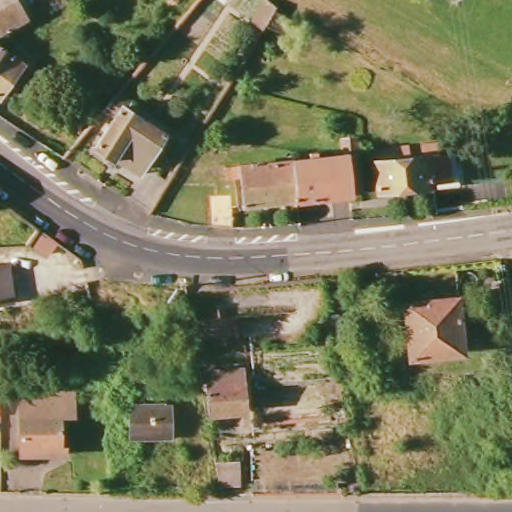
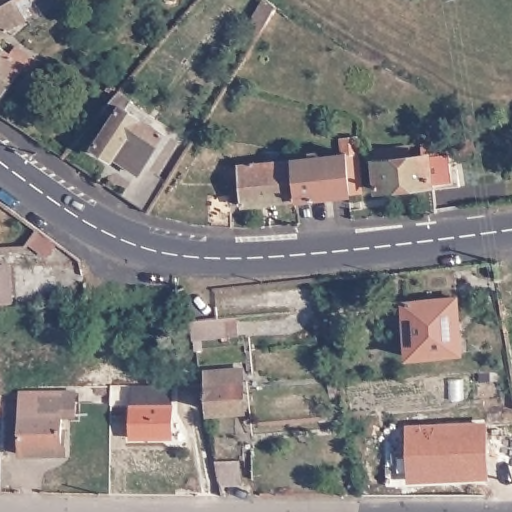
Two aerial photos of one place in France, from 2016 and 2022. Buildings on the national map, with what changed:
unchanged [(9,0),(0,5),(0,0),(9,0)]
unchanged [(9,0),(15,0),(25,18),(0,32),(0,5),(9,0)]
unchanged [(265,23),(261,29),(251,21),(264,0),(268,0),(277,7),(273,9),(289,19),(281,32),(265,23)]
unchanged [(9,54),(14,46),(33,59),(26,69),(19,64),(0,90),(0,47),(9,54)]
unchanged [(144,165),(142,169),(116,151),(112,159),(93,146),(121,105),(165,134),(144,165)]
unchanged [(308,152),(317,152),(318,156),(340,154),(339,138),(354,137),(360,194),(349,194),(347,194),(345,195),(332,197),(295,200),(291,159),(309,158),(308,152)]
unchanged [(401,215),(398,189),(374,192),(373,173),(363,173),(362,161),(371,160),(371,150),(394,148),(395,154),(405,154),(406,158),(420,156),(419,145),(437,144),(438,156),(430,159),(433,185),(412,189),(415,215),(401,215)]
unchanged [(295,200),(241,206),(239,177),(224,178),(224,173),(214,174),(215,179),(183,182),(190,170),(291,159),(295,200)]
unchanged [(146,212),(123,197),(142,169),(144,165),(166,180),(146,212)]
unchanged [(207,196),(228,195),(231,228),(207,227),(207,196)]
unchanged [(58,245),(49,259),(33,248),(41,232),(58,245)]
unchanged [(1,267),(5,302),(0,303),(0,267),(1,267)]
unchanged [(461,357),(408,360),(405,307),(428,305),(427,273),(455,270),(461,357)]
unchanged [(235,322),(235,335),(192,342),(189,326),(235,322)]
unchanged [(242,409),(207,412),(205,374),(239,372),(240,386),(242,409)]
unchanged [(69,393),(70,416),(58,416),(60,454),(19,455),(18,394),(69,393)]
unchanged [(163,399),(163,413),(168,413),(169,442),(130,443),(128,400),(163,399)]
new [(410,430),(485,427),(487,476),(412,479),(410,430)]
unchanged [(232,452),(233,474),(216,475),(213,453),(232,452)]

